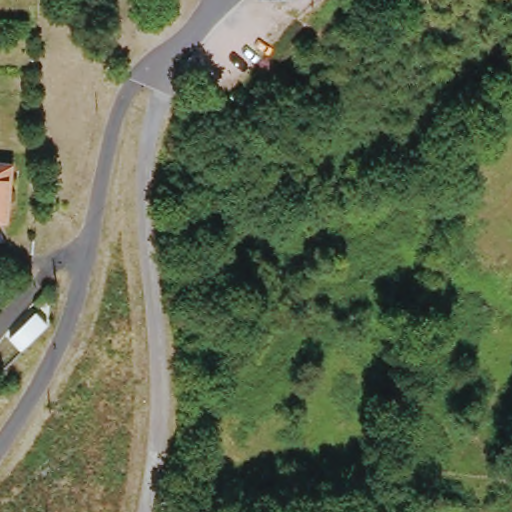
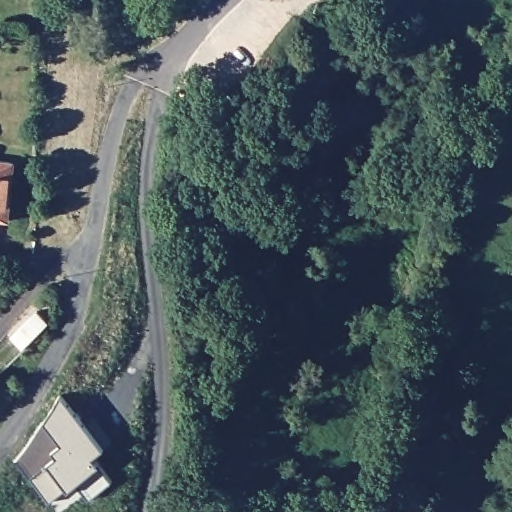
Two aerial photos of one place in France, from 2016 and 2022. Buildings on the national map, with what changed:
unchanged [(0,163),(20,168),(11,225),(0,222),(0,163)]
new [(39,465),(47,458),(30,439),(47,412),(83,429),(87,420),(114,432),(109,441),(97,451),(117,474),(77,508),(64,492),(40,512),(34,512),(17,492),(42,470),(39,465)]

